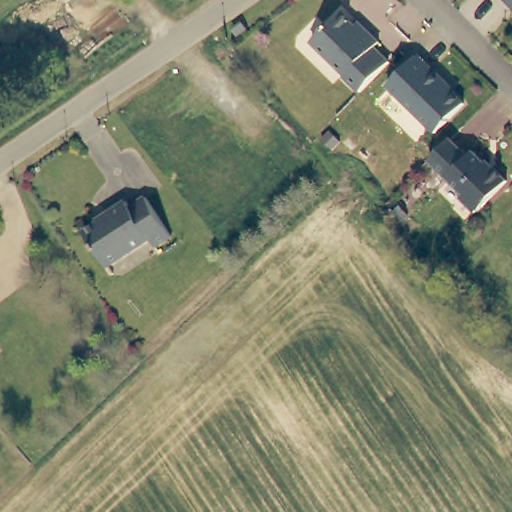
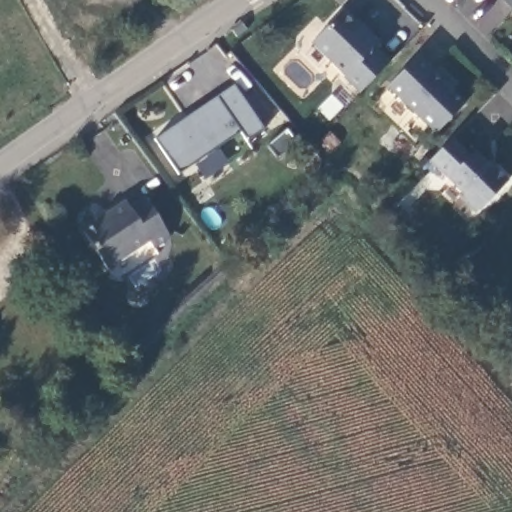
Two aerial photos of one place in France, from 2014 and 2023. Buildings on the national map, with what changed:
unchanged [(506,1),(507,0),(512,0),(512,7),(506,1)]
unchanged [(344,15),(365,36),(368,31),(381,44),(376,49),(392,65),(362,94),(314,42),(344,15)]
unchanged [(388,87),(419,59),(447,85),(445,87),(465,106),(435,135),(388,87)]
new [(155,140),(234,85),(265,130),(247,141),(240,132),(179,174),(155,140)]
unchanged [(469,156),(475,151),(510,181),(476,212),(461,197),(464,194),(430,160),(452,137),(469,156)]
unchanged [(131,202),(135,209),(150,200),(175,239),(159,249),(154,241),(111,267),(89,231),(131,202)]

